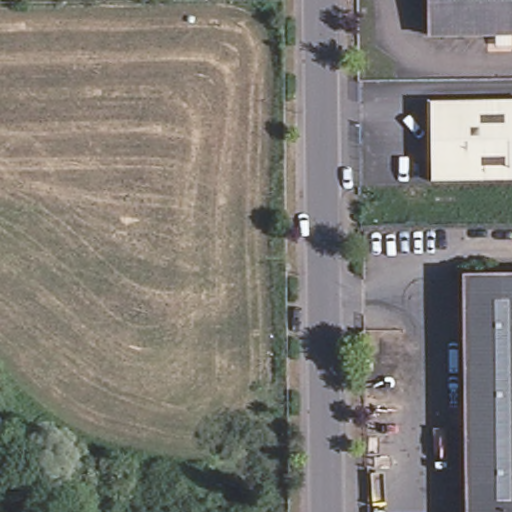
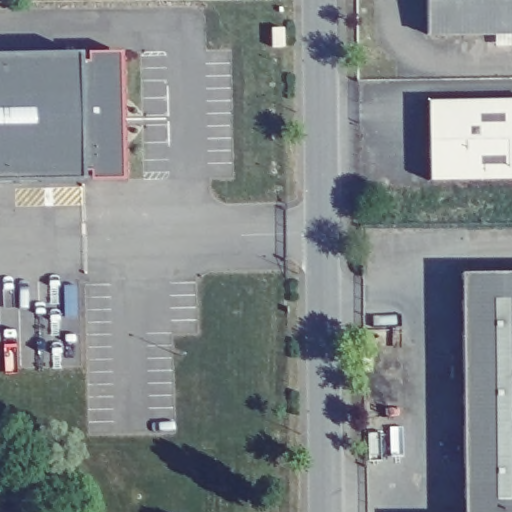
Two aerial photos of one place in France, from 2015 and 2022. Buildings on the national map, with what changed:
unchanged [(498,43),(498,31),(429,31),(429,0),(512,0),(512,42),(498,43)]
new [(122,53),(126,181),(83,182),(0,183),(0,56),(80,54),(122,53)]
unchanged [(512,102),(512,181),(431,182),(430,103),(512,102)]
unchanged [(512,276),(512,512),(465,512),(463,276),(512,276)]

